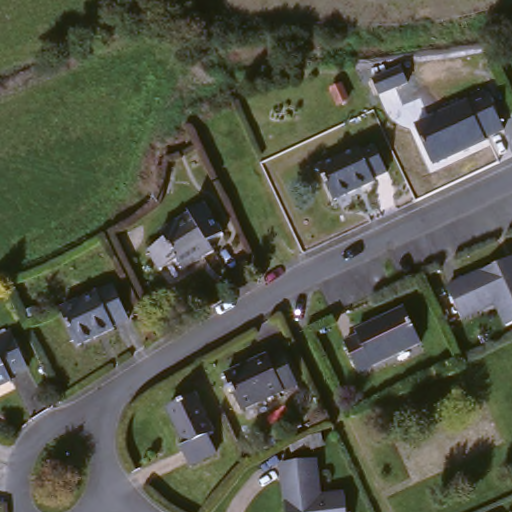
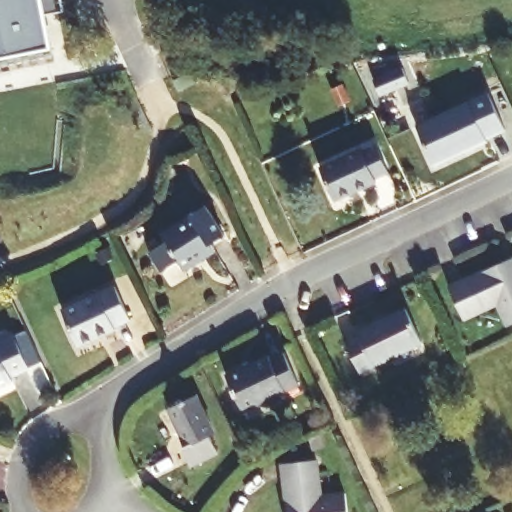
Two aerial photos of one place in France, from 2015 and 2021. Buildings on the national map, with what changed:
new [(44,14),(50,48),(0,58),(0,0),(60,0),(63,11),(44,14)]
unchanged [(374,79),(403,66),(411,82),(382,95),(374,79)]
demolished [(399,91),(428,79),(435,95),(406,107),(399,91)]
unchanged [(493,97),(511,132),(439,166),(423,130),(493,97)]
unchanged [(380,144),(391,173),(378,179),(378,189),(334,207),(318,169),(380,144)]
unchanged [(164,243),(161,232),(206,207),(226,239),(214,247),(215,256),(184,275),(176,262),(159,273),(146,251),(164,243)]
unchanged [(508,264),(509,269),(512,269),(512,322),(507,325),(496,303),(465,316),(455,289),(508,264)]
unchanged [(113,290),(129,322),(114,327),(118,330),(83,347),(62,313),(113,290)]
unchanged [(363,333),(359,327),(407,307),(423,340),(361,369),(348,340),(363,333)]
unchanged [(31,371),(13,377),(13,384),(0,390),(0,337),(11,332),(31,371)]
unchanged [(264,358),(270,364),(286,357),(298,388),(239,417),(226,379),(264,358)]
unchanged [(198,397),(213,430),(206,432),(217,456),(193,467),(182,446),(188,443),(171,409),(198,397)]
unchanged [(314,462),(316,490),(346,488),(348,512),(290,512),(284,466),(314,462)]

